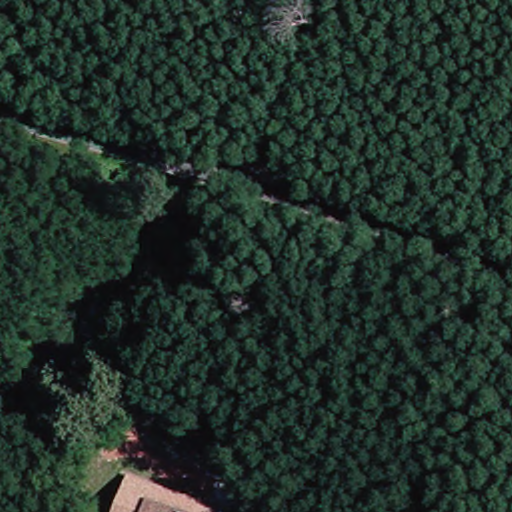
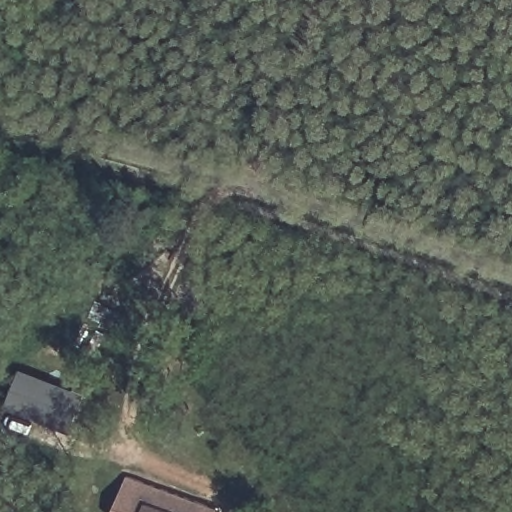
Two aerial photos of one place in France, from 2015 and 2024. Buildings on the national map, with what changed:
new [(83,393),(69,430),(7,406),(21,370),(83,393)]
unchanged [(111,512),(124,478),(220,509),(219,512),(111,512)]

